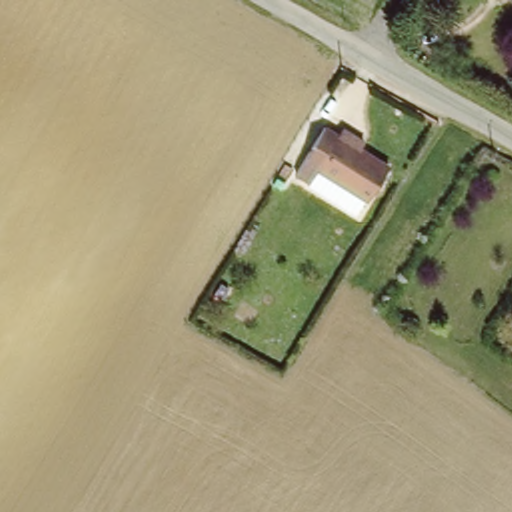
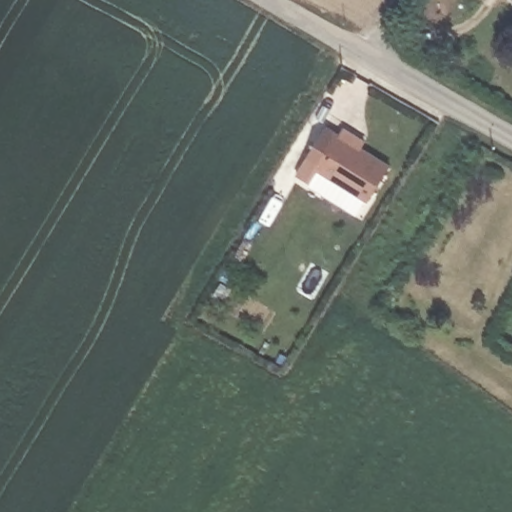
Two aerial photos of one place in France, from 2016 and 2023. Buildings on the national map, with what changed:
unchanged [(512,0),(512,2),(507,0),(512,0)]
unchanged [(371,202),(320,172),(310,187),(295,177),(324,132),(339,141),(346,130),(357,138),(359,136),(367,141),(360,154),(389,170),(371,202)]

